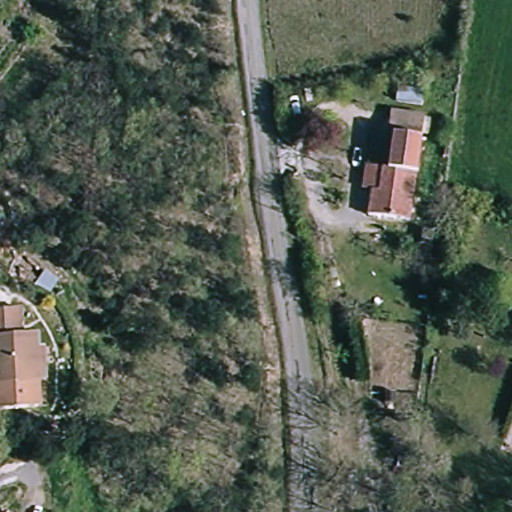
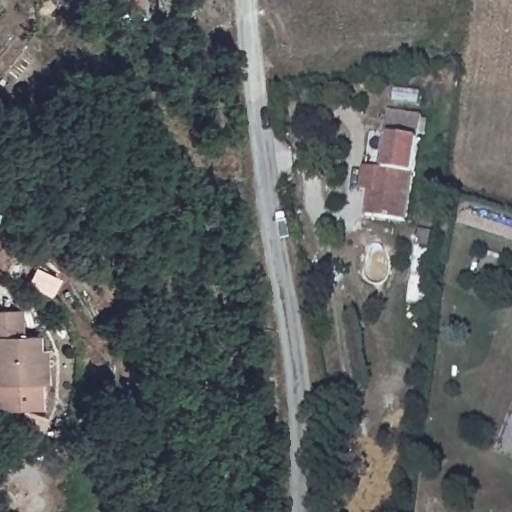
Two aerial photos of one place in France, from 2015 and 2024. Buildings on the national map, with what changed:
unchanged [(386,153),(391,154),(400,121),(430,129),(408,213),(367,201),(375,177),(379,178),(386,153)]
unchanged [(37,338),(43,412),(0,415),(0,313),(20,312),(22,339),(37,338)]

